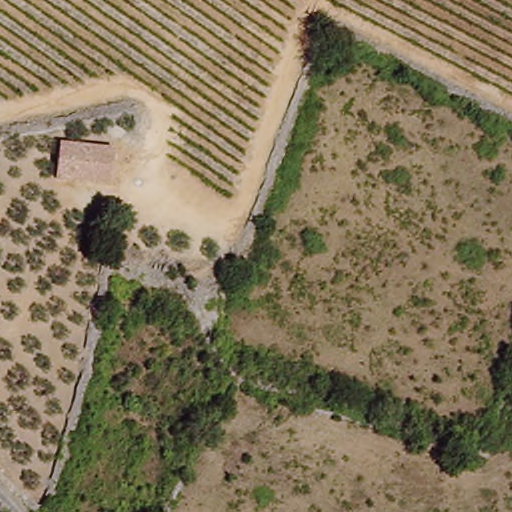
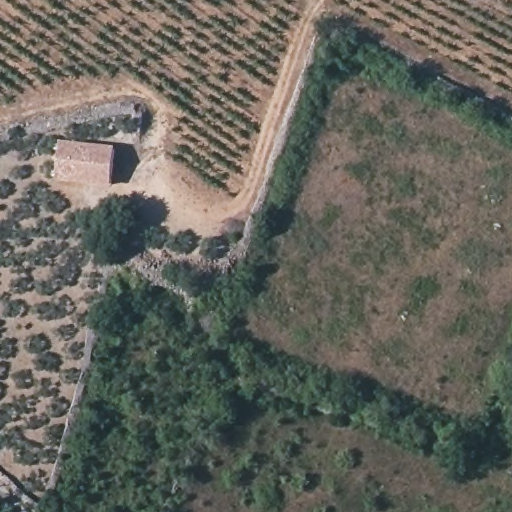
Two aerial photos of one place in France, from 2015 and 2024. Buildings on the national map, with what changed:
unchanged [(116,147),(112,187),(57,181),(61,140),(116,147)]

